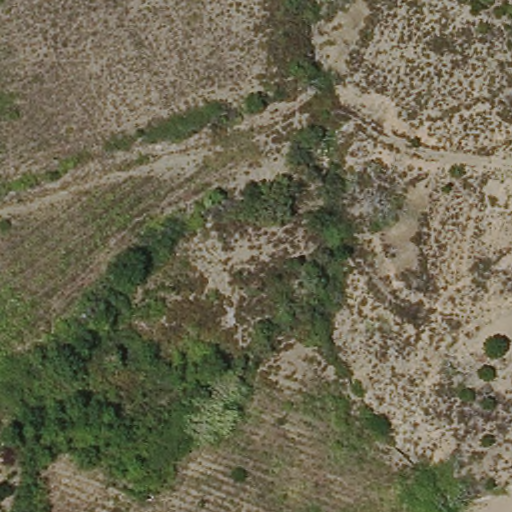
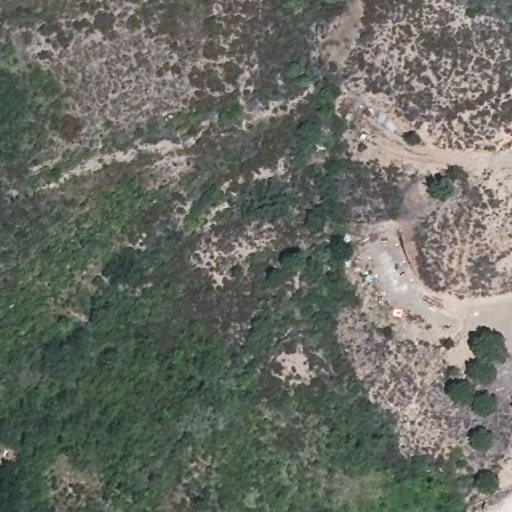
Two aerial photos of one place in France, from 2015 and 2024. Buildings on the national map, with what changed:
[]

